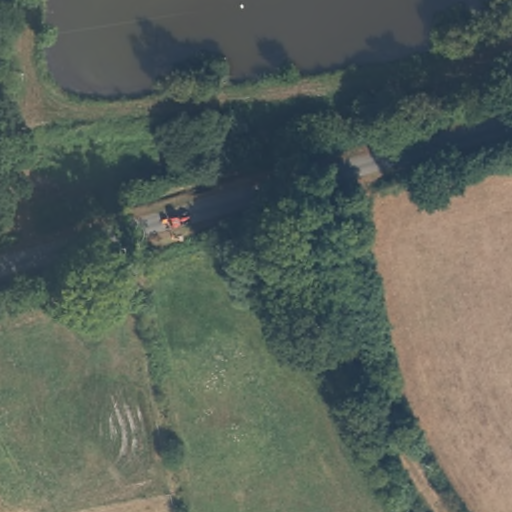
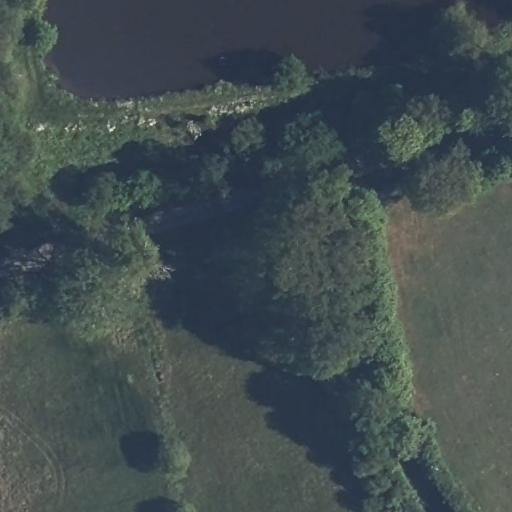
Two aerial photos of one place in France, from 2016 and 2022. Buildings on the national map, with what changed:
unchanged [(0,106),(0,102),(8,75),(23,77),(16,109),(0,106)]

